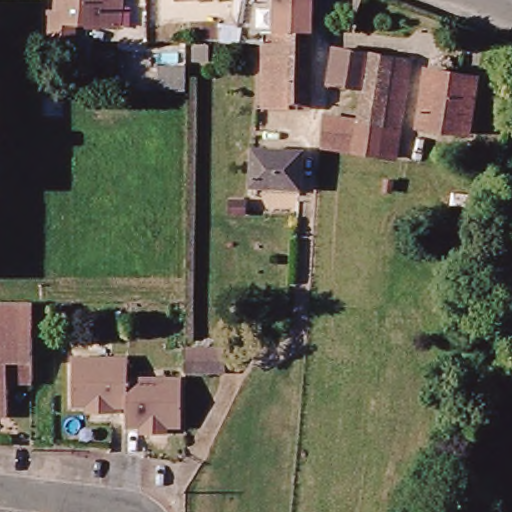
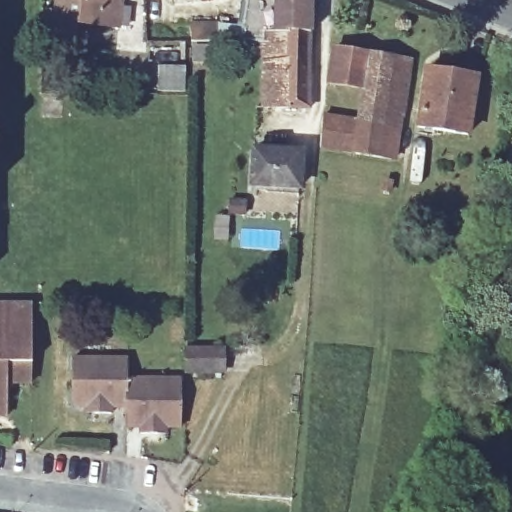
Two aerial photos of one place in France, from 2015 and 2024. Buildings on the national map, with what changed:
unchanged [(58,0),(122,0),(121,25),(70,23),(69,48),(37,46),(40,10),(57,10),(58,0)]
unchanged [(264,47),(191,46),(192,25),(232,26),(246,26),(246,17),(263,7),(263,0),(313,0),(312,35),(310,53),(307,82),(263,83),(264,53),(264,47)]
unchanged [(335,51),(412,59),(405,113),(402,136),(398,157),(318,149),(320,123),(354,127),(362,87),(329,84),(335,51)]
unchanged [(474,90),(473,134),(415,131),(421,73),(452,73),(453,70),(473,70),(472,89),(474,90)]
unchanged [(161,92),(160,81),(172,81),(172,71),(185,71),(184,92),(161,92)]
unchanged [(307,106),(262,104),(263,83),(307,82),(307,106)]
unchanged [(247,151),(295,150),(294,188),(247,188),(247,151)]
unchanged [(32,306),(32,365),(32,385),(9,385),(9,417),(0,417),(0,306),(32,306)]
unchanged [(180,344),(222,344),(222,366),(180,366),(180,344)]
unchanged [(155,437),(140,437),(137,427),(124,427),(124,408),(111,408),(111,419),(93,420),(92,409),(69,407),(69,362),(131,360),(131,378),(181,377),(181,427),(169,426),(168,437),(155,437)]

